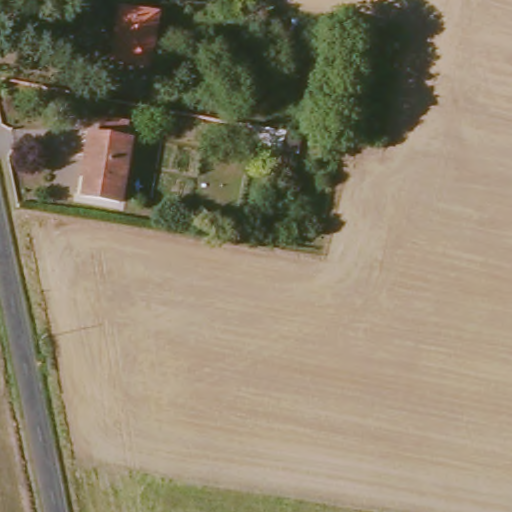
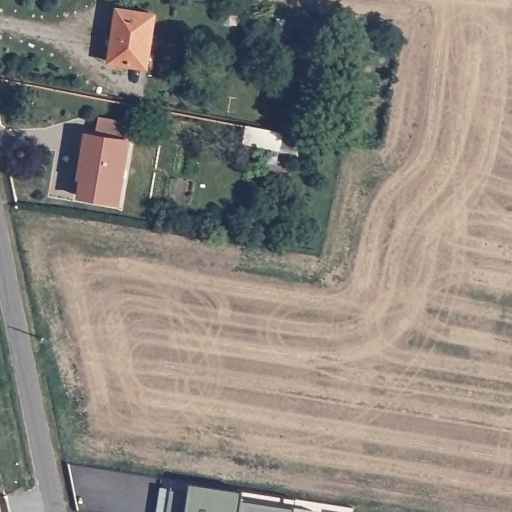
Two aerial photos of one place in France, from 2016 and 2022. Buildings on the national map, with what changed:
unchanged [(151,65),(114,60),(122,8),(158,13),(151,65)]
unchanged [(123,206),(85,200),(96,136),(133,144),(123,206)]
new [(191,492),(192,485),(245,493),(244,499),(294,508),(293,512),(168,512),(171,490),(191,492)]

